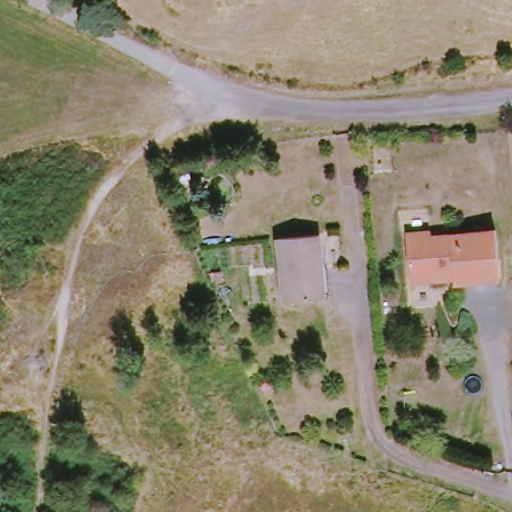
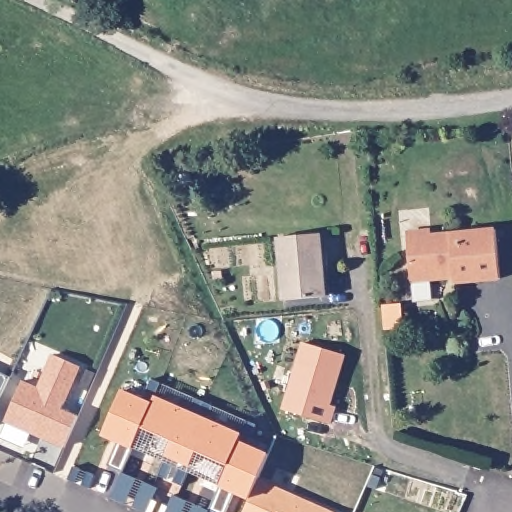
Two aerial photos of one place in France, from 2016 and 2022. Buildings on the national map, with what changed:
unchanged [(462,280),(455,282),(456,284),(440,287),(440,284),(426,288),(419,283),(410,244),(435,239),(435,244),(499,231),(508,279),(464,288),(462,280)]
unchanged [(280,245),(327,236),(333,268),(327,269),(334,295),(293,304),(280,245)]
new [(400,308),(402,328),(387,329),(385,309),(400,308)]
new [(344,356),(328,406),(333,407),(328,424),(283,410),(303,344),(344,356)]
new [(5,422),(22,382),(38,389),(53,356),(80,368),(62,410),(78,417),(65,448),(42,438),(33,434),(5,422)]
new [(0,399),(0,373),(10,378),(0,399)]
new [(107,466),(120,440),(105,434),(124,391),(152,403),(155,397),(241,434),(237,442),(269,454),(257,481),(251,496),(222,484),(223,477),(135,441),(123,473),(107,466)]
new [(328,512),(244,512),(257,481),(328,512)]

